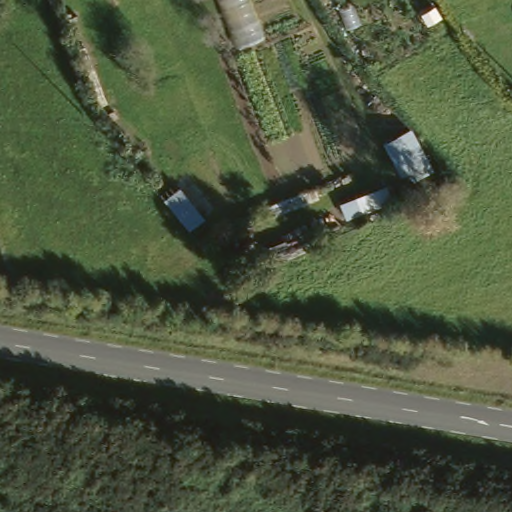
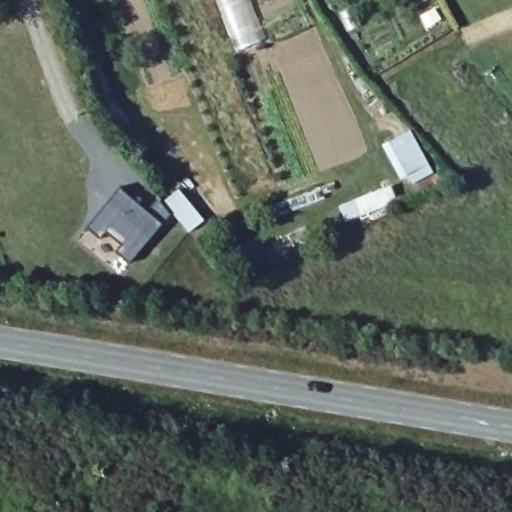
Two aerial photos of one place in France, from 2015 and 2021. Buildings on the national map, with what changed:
new [(120,188),(163,224),(129,263),(115,252),(121,245),(106,232),(100,240),(87,228),(120,188)]
new [(179,188),(202,221),(188,232),(165,199),(179,188)]

